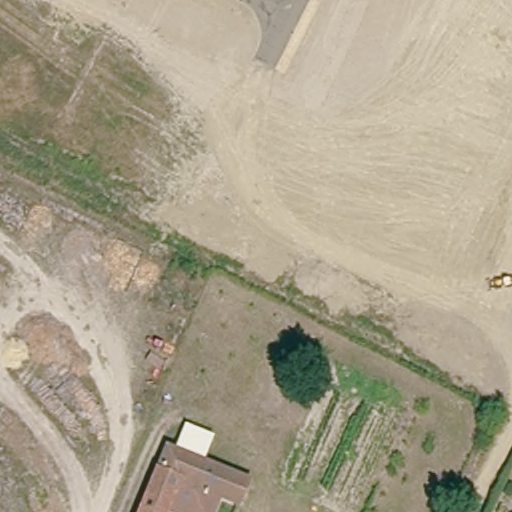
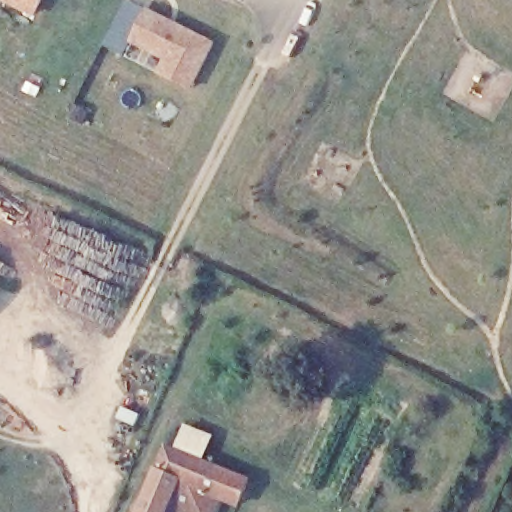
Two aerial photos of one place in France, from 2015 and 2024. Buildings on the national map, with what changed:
new [(0,1),(0,0),(41,0),(32,18),(0,1)]
new [(155,73),(162,58),(129,42),(147,8),(216,42),(192,91),(155,73)]
unchanged [(254,478),(242,506),(231,501),(226,512),(150,512),(175,448),(254,478)]

